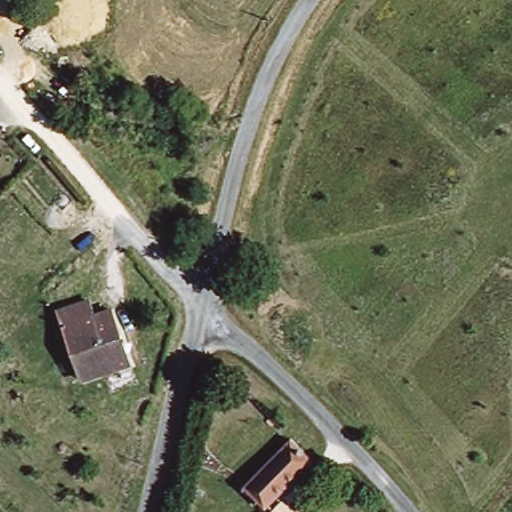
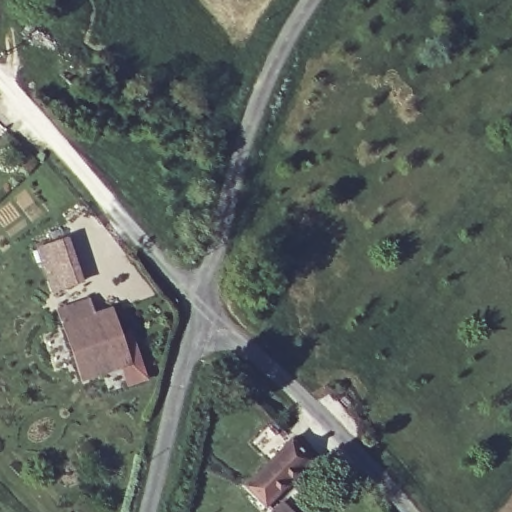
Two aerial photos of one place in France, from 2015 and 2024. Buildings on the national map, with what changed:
new [(35,251),(67,237),(83,282),(51,293),(35,251)]
unchanged [(120,365),(83,380),(56,314),(86,302),(92,316),(108,309),(118,334),(129,361),(120,365)]
unchanged [(312,463),(264,507),(242,483),(291,440),(312,463)]
unchanged [(271,512),(274,508),(279,512),(271,512)]

